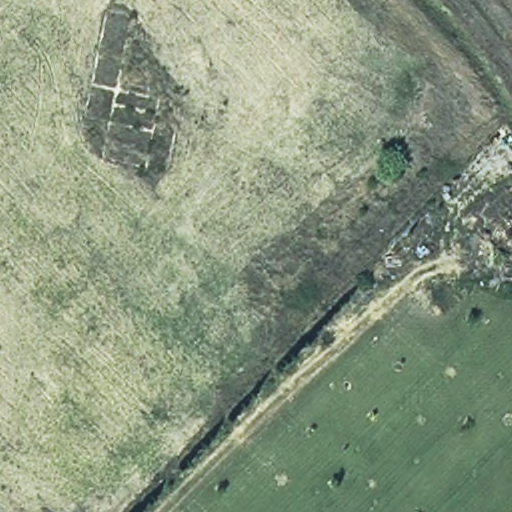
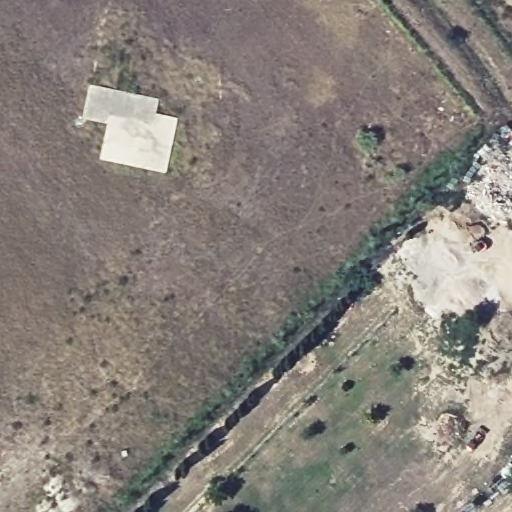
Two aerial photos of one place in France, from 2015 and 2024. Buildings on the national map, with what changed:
new [(89,82),(160,97),(157,111),(180,117),(167,172),(99,158),(106,124),(82,118),(89,82)]

